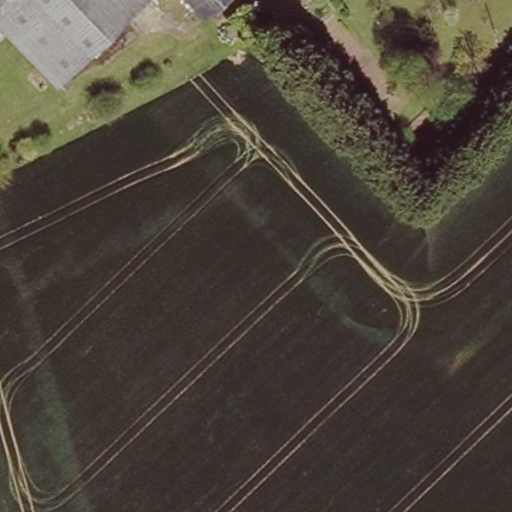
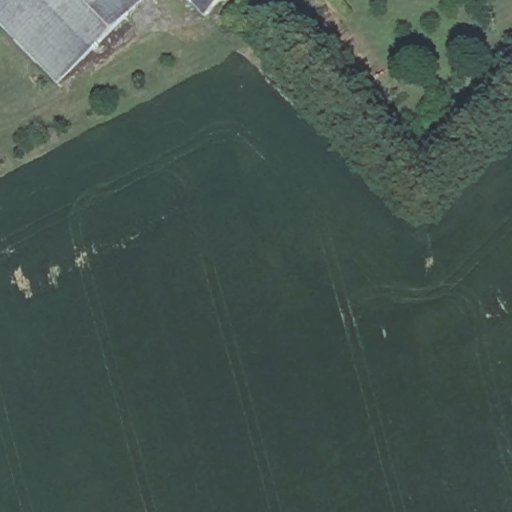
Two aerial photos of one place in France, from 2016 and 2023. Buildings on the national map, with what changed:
unchanged [(0,29),(0,0),(140,0),(58,85),(0,29)]
unchanged [(179,0),(230,0),(201,24),(179,0)]

